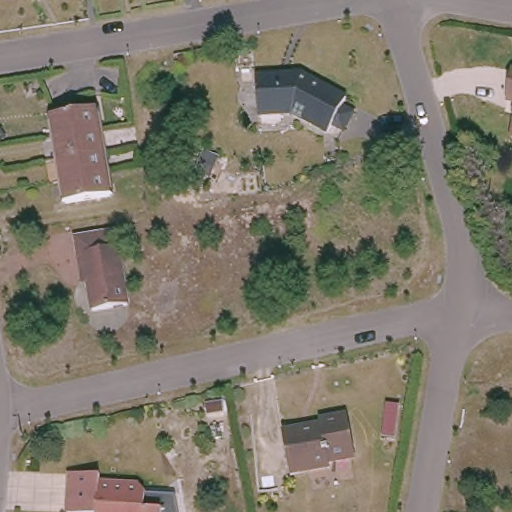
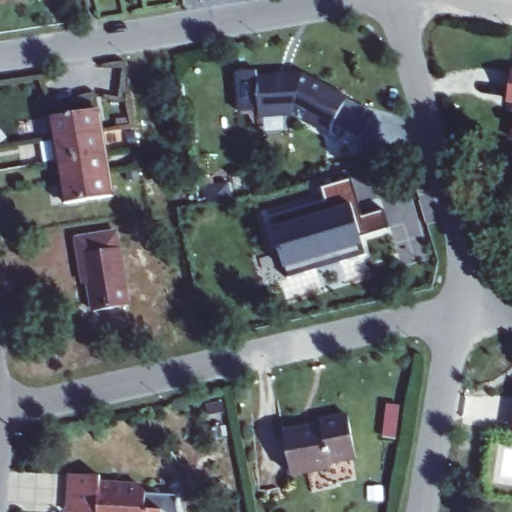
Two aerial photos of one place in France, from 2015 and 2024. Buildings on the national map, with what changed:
unchanged [(301,69),(352,91),(348,99),(359,105),(350,122),(339,117),(335,125),(304,109),(263,110),(262,71),(301,69)]
unchanged [(511,102),(512,96),(512,103),(511,102)]
unchanged [(98,105),(112,191),(67,199),(52,113),(98,105)]
new [(327,201),(323,189),(353,180),(360,205),(352,207),(367,255),(343,263),(340,252),(316,260),(320,271),(291,280),(272,219),(327,201)]
new [(231,184),(235,200),(211,205),(208,189),(231,184)]
unchanged [(78,274),(73,239),(112,232),(125,303),(91,310),(86,281),(80,282),(78,274)]
unchanged [(322,425),(321,421),(347,416),(356,457),(332,462),(333,467),(293,475),(283,432),(322,425)]
unchanged [(65,508),(66,478),(96,480),(96,487),(135,488),(141,492),(140,512),(149,512),(64,512),(65,508)]

